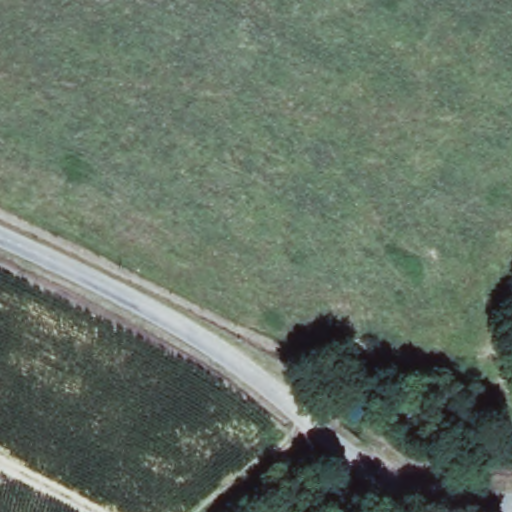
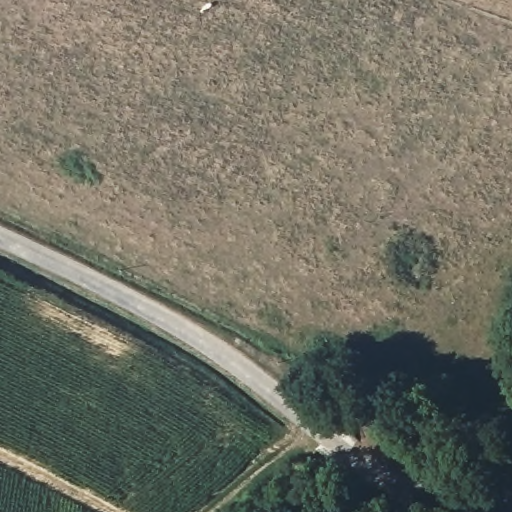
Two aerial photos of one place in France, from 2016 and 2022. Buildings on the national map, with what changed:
[]

